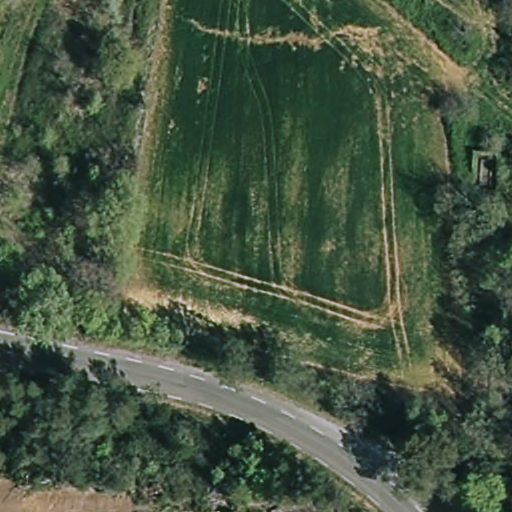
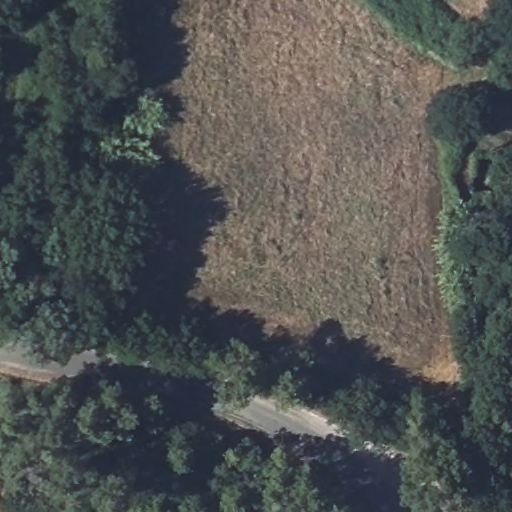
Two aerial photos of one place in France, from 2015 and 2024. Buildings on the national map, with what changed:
unchanged [(496,151),(496,193),(480,193),(466,192),(465,151),(496,151)]

